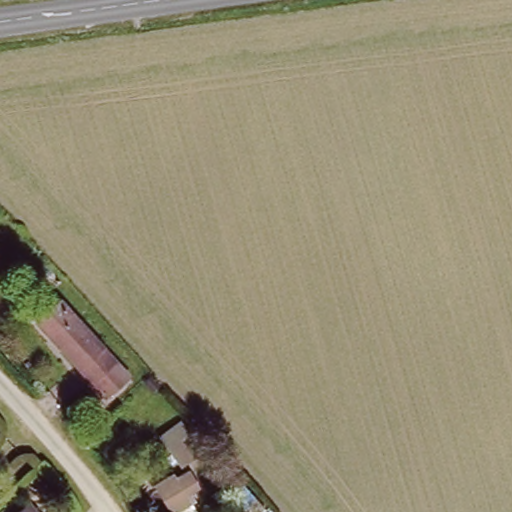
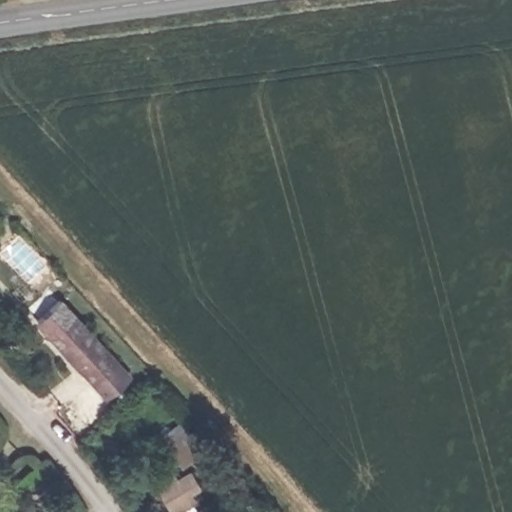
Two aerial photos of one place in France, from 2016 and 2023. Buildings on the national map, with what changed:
unchanged [(129,379),(107,399),(61,348),(50,334),(55,329),(72,315),(129,379)]
unchanged [(191,439),(199,454),(177,466),(169,451),(191,439)]
unchanged [(170,472),(186,500),(164,512),(149,484),(170,472)]
unchanged [(262,510),(260,512),(240,512),(226,494),(239,484),(262,510)]
unchanged [(41,512),(16,512),(30,500),(41,512)]

